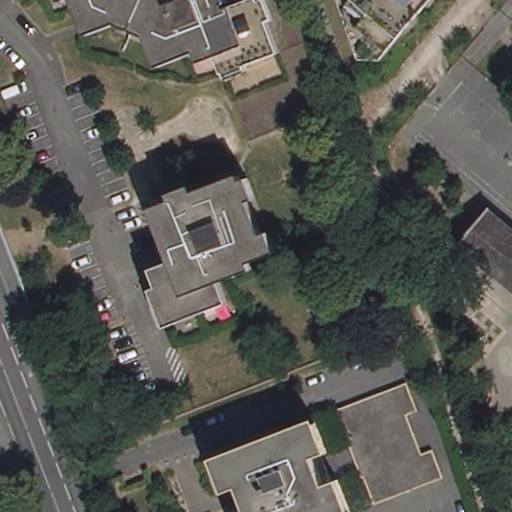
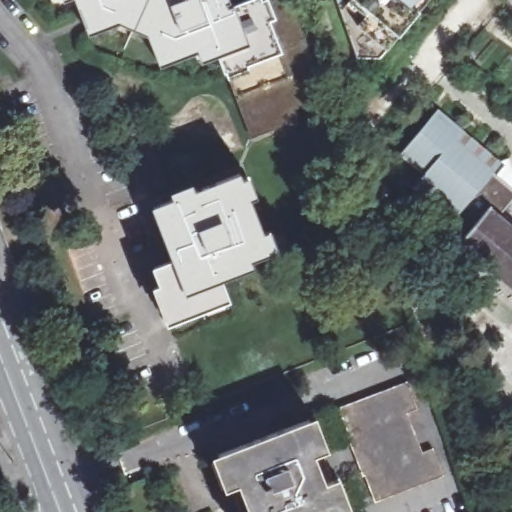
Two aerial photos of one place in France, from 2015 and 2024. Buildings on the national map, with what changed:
unchanged [(219,4),(221,10),(247,0),(285,0),(302,44),(221,80),(209,48),(155,69),(143,37),(115,25),(84,36),(70,0),(223,0),(224,2),(219,4)]
unchanged [(376,54),(353,53),(335,0),(420,0),(377,52),(376,54)]
unchanged [(302,44),(323,100),(296,110),(298,115),(291,118),(294,127),(280,132),(277,126),(272,128),(273,131),(253,139),(250,129),(240,132),(221,80),(302,44)]
new [(490,212),(474,232),(416,185),(423,175),(399,156),(438,110),(501,162),(492,175),(512,190),(512,200),(497,218),(490,212)]
unchanged [(235,174),(263,251),(217,270),(215,265),(210,267),(222,300),(167,321),(147,266),(175,256),(156,204),(235,174)]
unchanged [(512,230),(512,288),(463,247),(490,212),(512,230)]
unchanged [(416,378),(427,406),(414,411),(429,450),(441,445),(452,473),(383,498),(347,405),(416,378)]
unchanged [(318,416),(355,510),(349,512),(258,512),(252,494),(264,490),(260,477),(247,482),(242,468),(236,470),(228,450),(318,416)]

